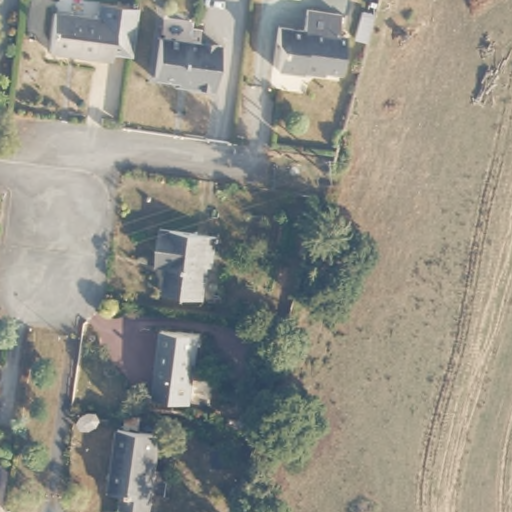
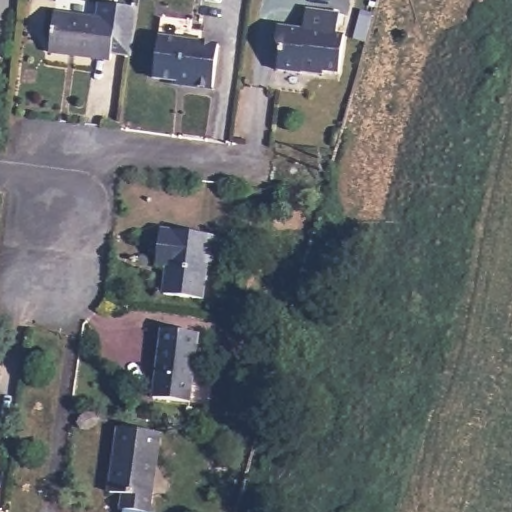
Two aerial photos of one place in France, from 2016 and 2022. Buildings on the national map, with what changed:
unchanged [(124,10),(125,10),(118,58),(98,55),(102,24),(83,21),(85,5),(124,10)]
unchanged [(302,70),(277,67),(281,47),(276,40),(277,24),(303,27),(306,6),(339,10),(337,31),(345,32),(340,70),(323,68),(323,71),(311,70),(302,69),(302,70)]
unchanged [(360,8),(370,10),(362,36),(352,34),(360,8)]
unchanged [(97,61),(36,53),(41,15),(83,21),(102,24),(98,55),(97,61)]
unchanged [(186,83),(186,77),(151,72),(156,31),(186,36),(212,42),(208,85),(186,83)]
unchanged [(157,263),(162,226),(217,235),(216,264),(207,262),(204,295),(167,291),(171,265),(157,263)]
unchanged [(200,332),(191,400),(154,393),(163,327),(200,332)]
unchanged [(118,490),(106,490),(114,426),(154,431),(146,507),(117,505),(118,490)]

